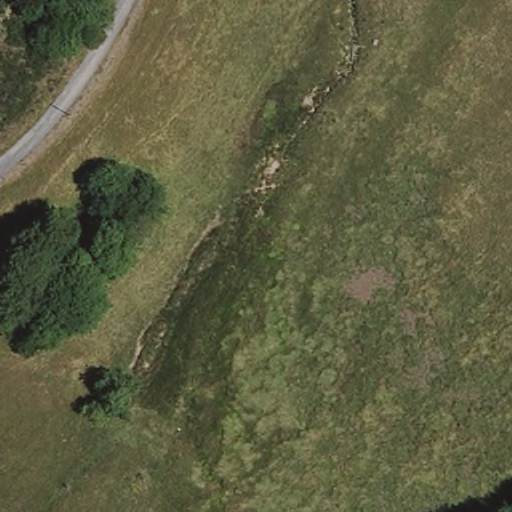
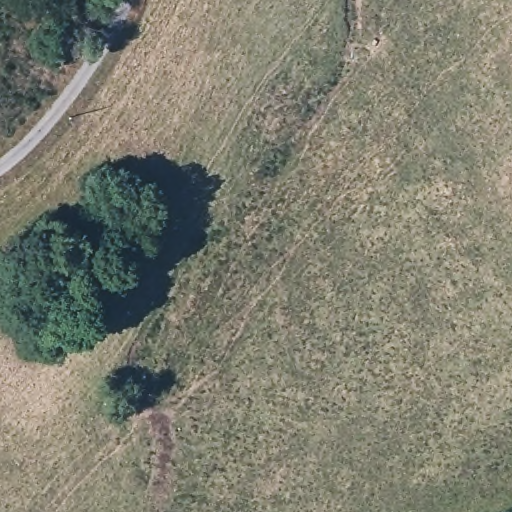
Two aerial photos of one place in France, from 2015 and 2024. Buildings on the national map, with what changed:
[]

